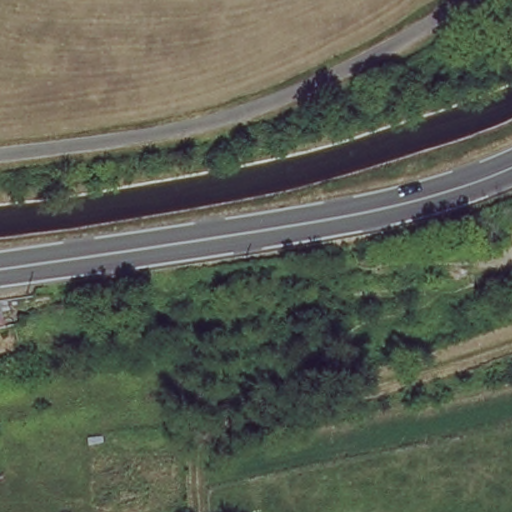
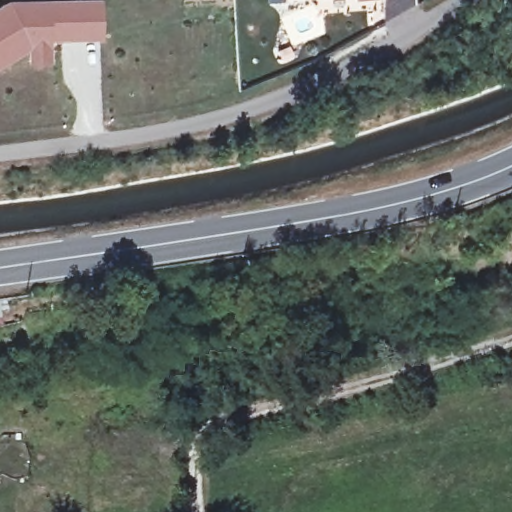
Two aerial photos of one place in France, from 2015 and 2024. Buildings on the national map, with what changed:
new [(50,64),(28,64),(28,50),(0,68),(0,7),(10,1),(101,0),(101,41),(51,42),(50,64)]

